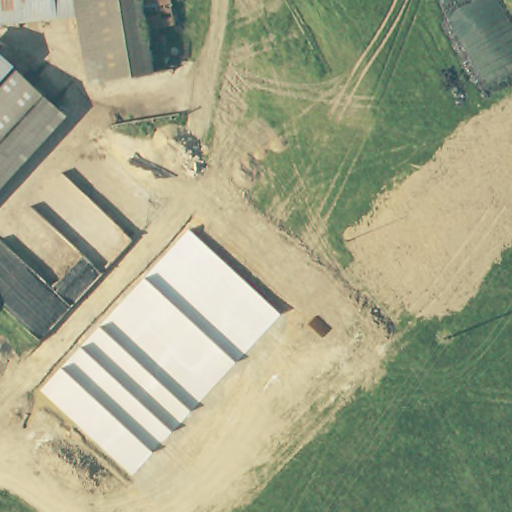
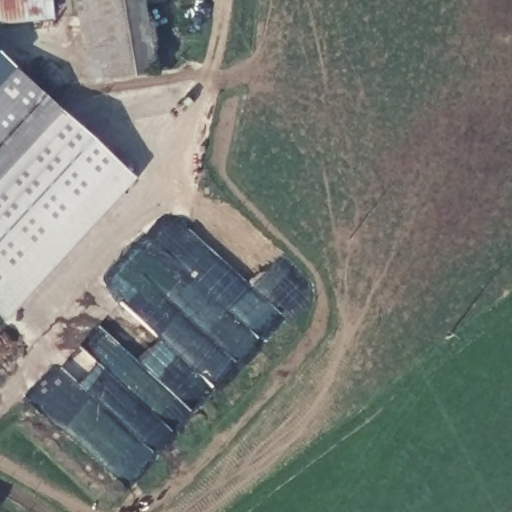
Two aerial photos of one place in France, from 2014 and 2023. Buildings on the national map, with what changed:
unchanged [(73,14),(0,20),(0,0),(72,0),(73,14)]
unchanged [(147,73),(94,79),(84,0),(138,0),(147,73)]
unchanged [(0,87),(0,55),(15,70),(0,87)]
unchanged [(0,182),(0,87),(15,70),(63,113),(0,182)]
new [(136,179),(6,320),(0,314),(0,182),(63,113),(136,179)]

